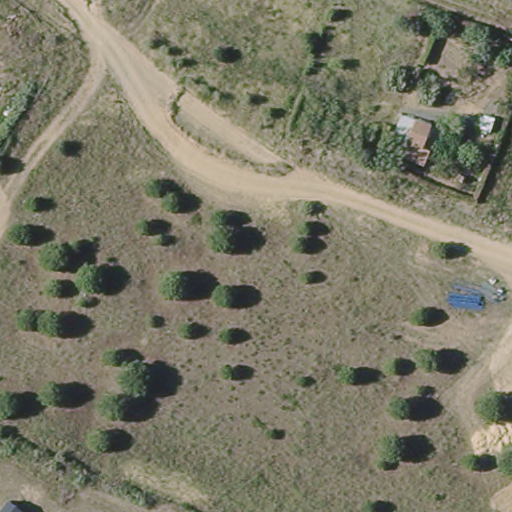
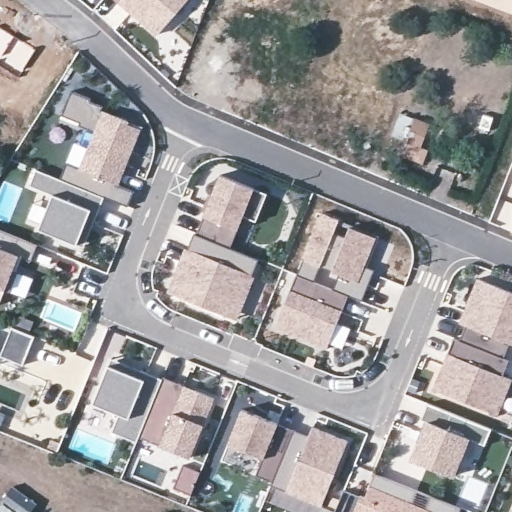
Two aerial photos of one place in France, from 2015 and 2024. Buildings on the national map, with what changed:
new [(114,0),(121,0),(118,3),(114,0)]
new [(118,3),(121,0),(189,0),(157,35),(118,3)]
new [(58,179),(65,164),(80,170),(95,133),(77,126),(78,123),(61,115),(71,91),(90,99),(89,101),(102,106),(101,110),(126,120),(125,123),(139,129),(129,152),(125,150),(121,160),(125,162),(116,184),(134,191),(128,207),(103,197),(83,249),(38,230),(52,195),(29,186),(36,170),(58,179)]
unchanged [(416,154),(423,157),(419,169),(396,161),(410,123),(426,129),(416,154)]
new [(220,175),(267,194),(256,222),(243,217),(230,248),(196,235),(220,175)]
new [(363,301),(348,296),(336,291),(341,276),(320,268),(314,283),(299,277),(322,215),(379,238),(366,268),(376,272),(363,301)]
new [(37,245),(30,262),(22,259),(16,272),(8,293),(4,291),(0,301),(0,231),(37,245)]
new [(223,315),(170,294),(183,262),(187,250),(194,234),(196,235),(230,248),(259,260),(241,304),(234,320),(223,315)]
new [(296,275),(348,296),(326,349),(274,328),(296,275)]
new [(466,326),(460,324),(478,280),(512,294),(512,379),(509,387),(512,388),(512,414),(500,408),(497,416),(433,390),(454,339),(459,341),(466,326)]
new [(22,366),(0,357),(0,353),(11,327),(34,337),(22,366)]
new [(1,341),(0,344),(0,341),(1,341)]
new [(111,360),(140,371),(162,380),(136,443),(112,434),(119,417),(92,406),(108,366),(111,360)]
new [(159,444),(139,435),(162,380),(164,378),(214,398),(203,424),(190,458),(159,444)]
new [(428,423),(421,420),(428,404),(492,430),(485,446),(468,439),(453,477),(412,461),(428,423)]
new [(242,410),(293,431),(272,480),(257,474),(262,459),(228,446),(242,410)]
new [(272,480),(293,431),(309,437),(313,428),(348,442),(322,505),(271,484),(272,480)]
new [(360,497),(364,500),(375,474),(461,509),(459,512),(354,512),(360,497)]
new [(512,507),(512,512),(510,512),(512,507)]

